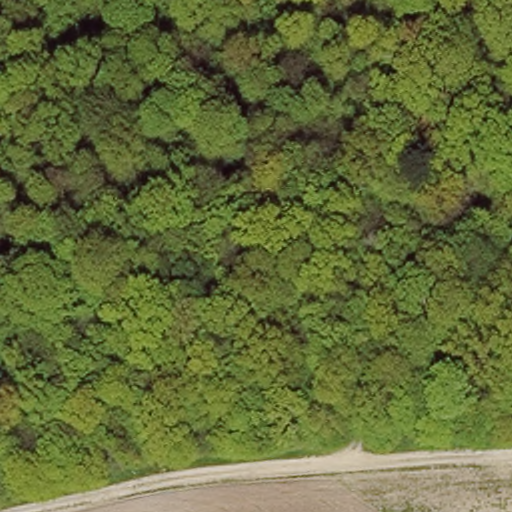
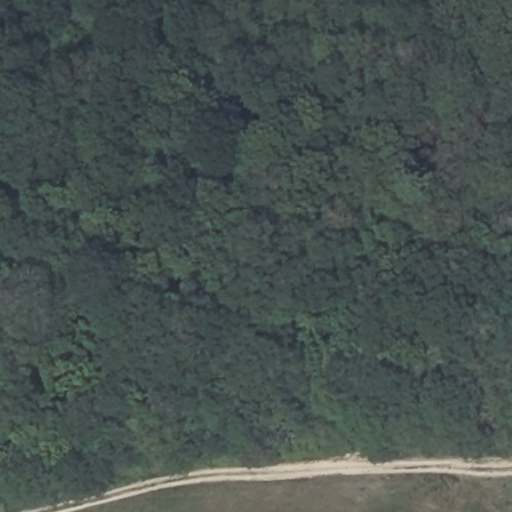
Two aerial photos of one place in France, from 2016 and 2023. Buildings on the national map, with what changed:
unchanged [(432,200),(375,206),(357,145),(416,126),(432,200)]

